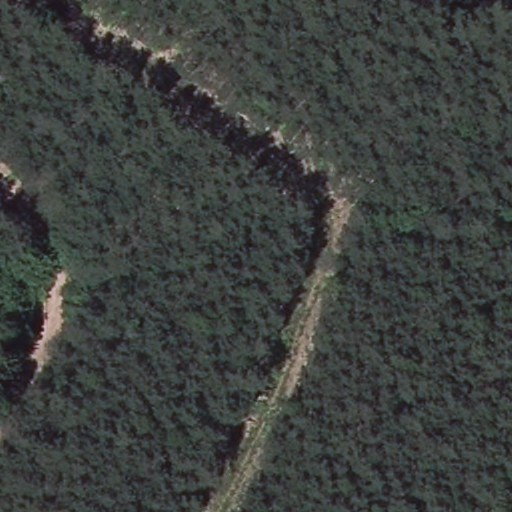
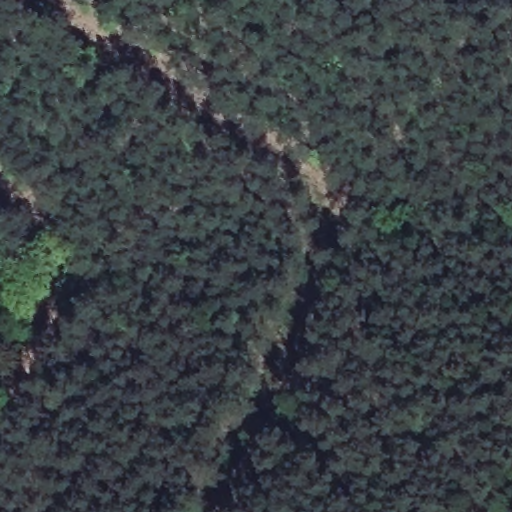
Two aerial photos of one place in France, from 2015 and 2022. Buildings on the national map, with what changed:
[]

